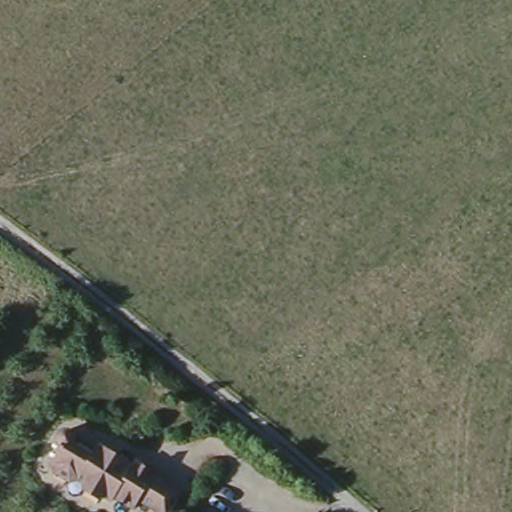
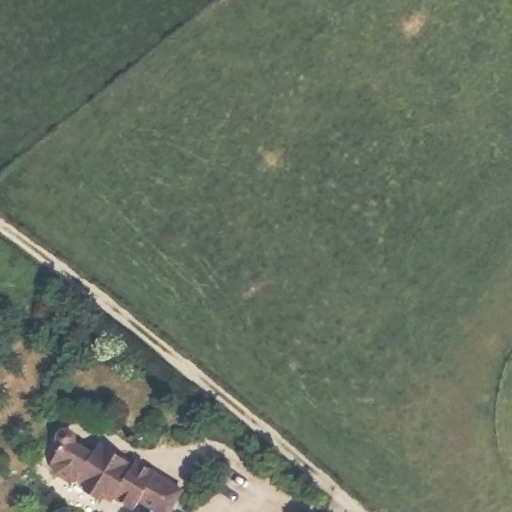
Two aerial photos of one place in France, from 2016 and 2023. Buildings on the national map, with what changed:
unchanged [(64,429),(98,450),(102,441),(182,490),(171,512),(156,512),(139,502),(135,508),(109,494),(104,503),(46,464),(64,429)]

